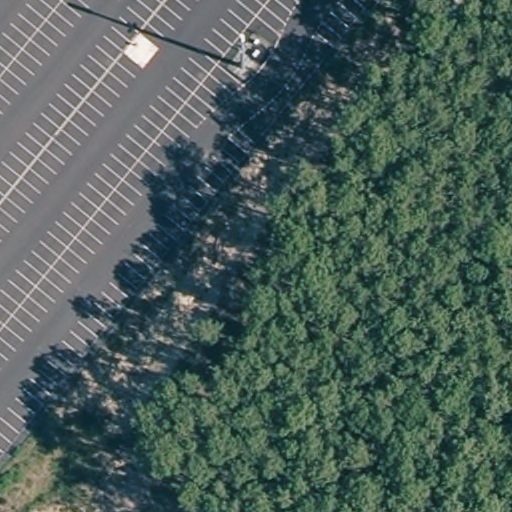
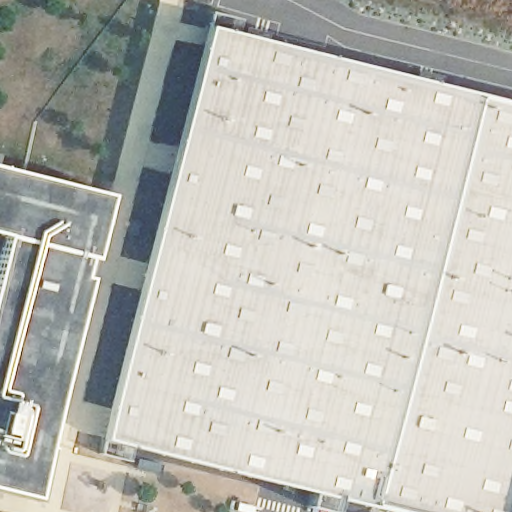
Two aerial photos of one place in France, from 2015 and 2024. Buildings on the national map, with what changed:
new [(209,27),(512,103),(512,512),(391,512),(106,439),(209,27)]
new [(0,273),(9,236),(0,234),(0,167),(113,195),(37,497),(0,488),(0,273)]

